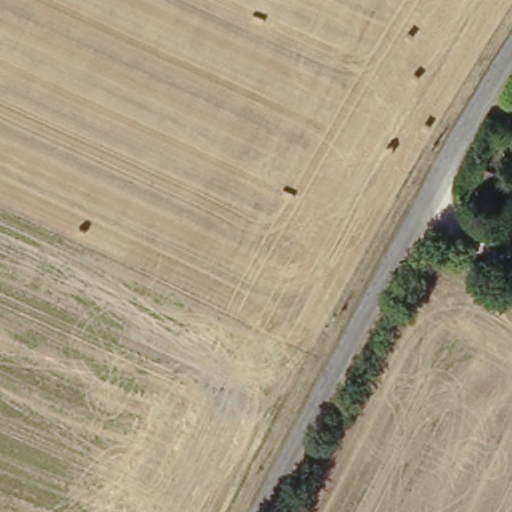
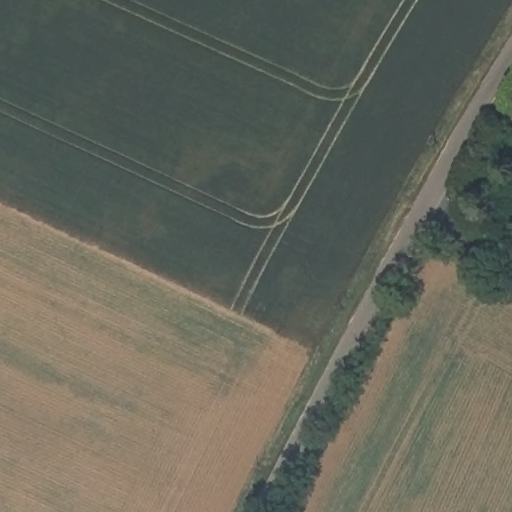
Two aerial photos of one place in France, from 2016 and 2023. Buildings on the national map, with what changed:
unchanged [(481,174),(500,185),(490,206),(469,195),(481,174)]

